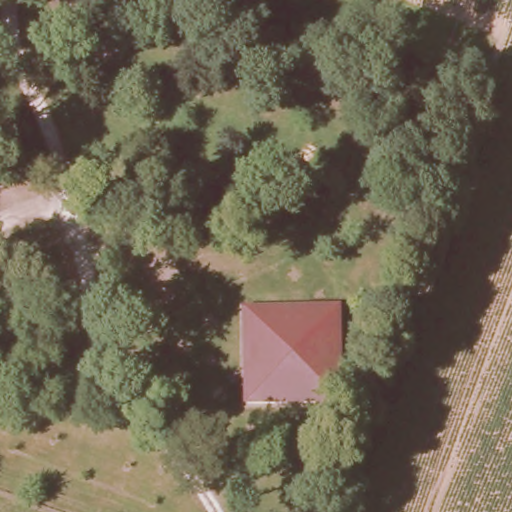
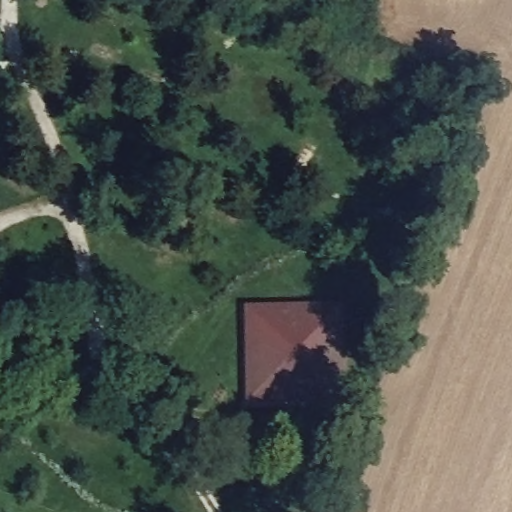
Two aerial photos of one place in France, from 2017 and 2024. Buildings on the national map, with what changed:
unchanged [(341,304),(344,404),(243,406),(242,306),(341,304)]

